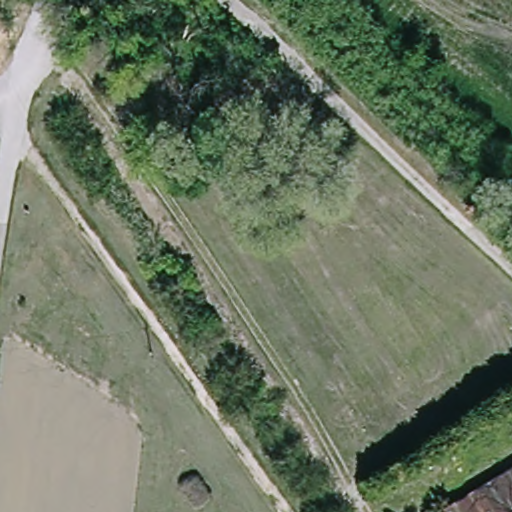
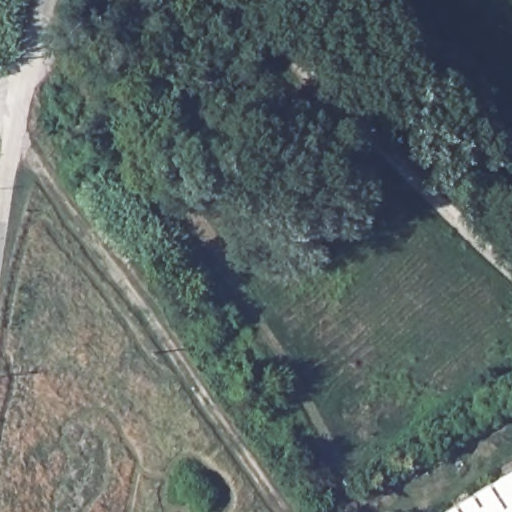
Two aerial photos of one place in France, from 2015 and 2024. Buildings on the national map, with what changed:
unchanged [(512,469),(512,512),(446,512),(512,469)]

